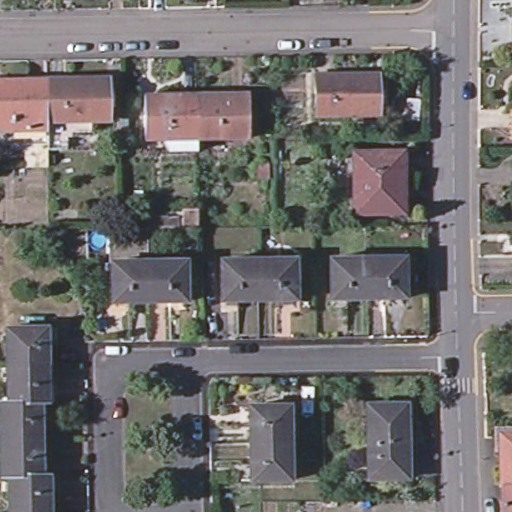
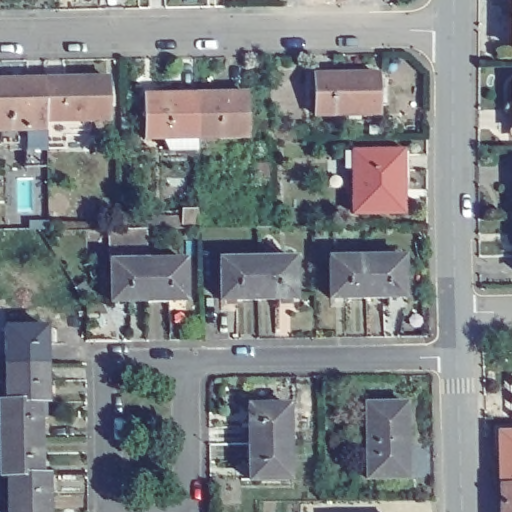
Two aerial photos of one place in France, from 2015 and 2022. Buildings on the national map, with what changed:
unchanged [(375,72),(375,121),(314,122),(312,73),(375,72)]
unchanged [(47,84),(108,82),(109,125),(49,125),(47,84)]
unchanged [(49,125),(49,133),(0,134),(0,84),(47,84),(49,125)]
unchanged [(247,98),(247,141),(198,142),(197,99),(247,98)]
unchanged [(198,142),(145,143),(145,99),(197,99),(198,142)]
unchanged [(390,155),(392,218),(352,219),(350,155),(390,155)]
unchanged [(402,261),(402,297),(370,298),(370,262),(402,261)]
unchanged [(370,298),(330,299),(330,262),(370,262),(370,298)]
unchanged [(259,264),(292,263),(293,300),(260,300),(259,264)]
unchanged [(260,300),(222,300),(221,265),(259,264),(260,300)]
unchanged [(151,302),(110,302),(109,266),(150,265),(151,302)]
unchanged [(150,265),(182,265),(183,301),(151,302),(150,265)]
unchanged [(7,328),(45,327),(45,365),(8,365),(7,328)]
unchanged [(47,401),(39,401),(9,401),(8,365),(45,365),(47,401)]
unchanged [(39,440),(2,440),(1,401),(9,401),(39,401),(39,440)]
unchanged [(399,401),(400,476),(362,476),(361,402),(399,401)]
unchanged [(247,443),(245,405),(285,403),(286,442),(247,443)]
unchanged [(39,440),(40,475),(9,476),(2,476),(2,440),(39,440)]
unchanged [(502,441),(512,441),(512,512),(503,512),(503,490),(502,441)]
unchanged [(286,442),(287,477),(247,478),(247,443),(286,442)]
unchanged [(49,475),(49,512),(9,512),(9,476),(40,475),(49,475)]

